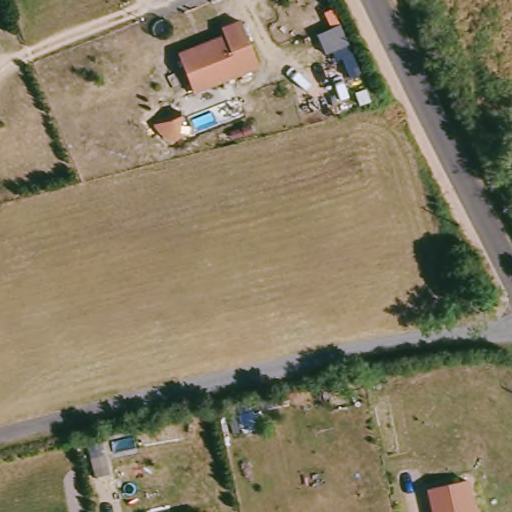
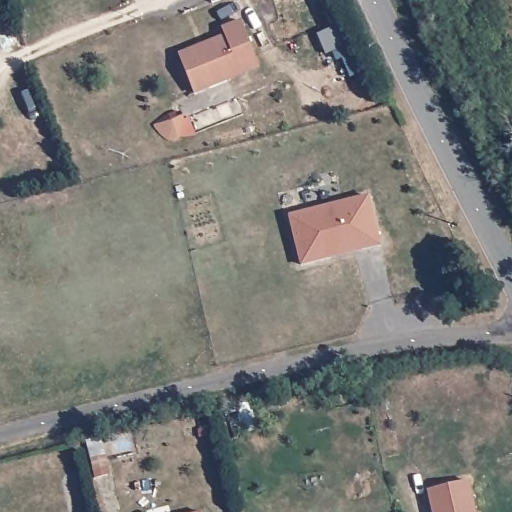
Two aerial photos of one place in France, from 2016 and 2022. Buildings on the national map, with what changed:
unchanged [(226,32),(223,25),(241,17),(259,61),(195,88),(179,51),(226,32)]
new [(288,215),(369,195),(381,245),(301,265),(288,215)]
unchanged [(468,481),(475,512),(435,512),(430,490),(468,481)]

